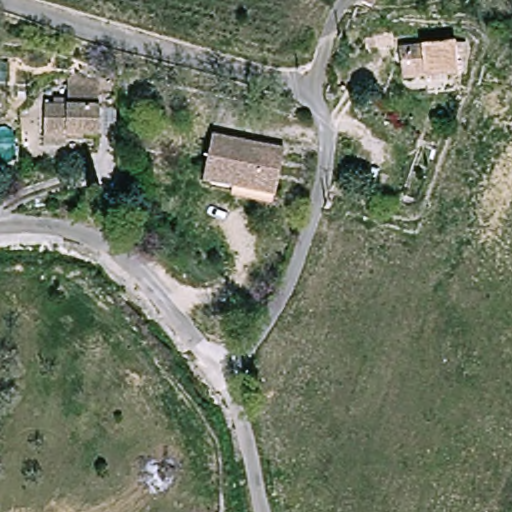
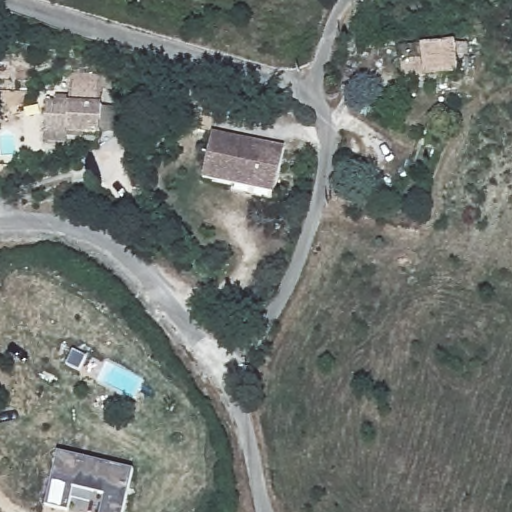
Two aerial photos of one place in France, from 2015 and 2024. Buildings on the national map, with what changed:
unchanged [(370,7),(380,12),(371,28),(362,23),(370,7)]
unchanged [(451,47),(456,71),(404,82),(400,57),(451,47)]
unchanged [(42,116),(63,116),(63,85),(96,86),(95,125),(95,144),(40,142),(41,129),(42,116)]
unchanged [(230,195),(232,188),(201,179),(214,135),(283,155),(271,199),(270,205),(230,195)]
new [(137,461),(124,512),(115,512),(101,508),(107,485),(77,477),(71,500),(48,495),(61,441),(137,461)]

